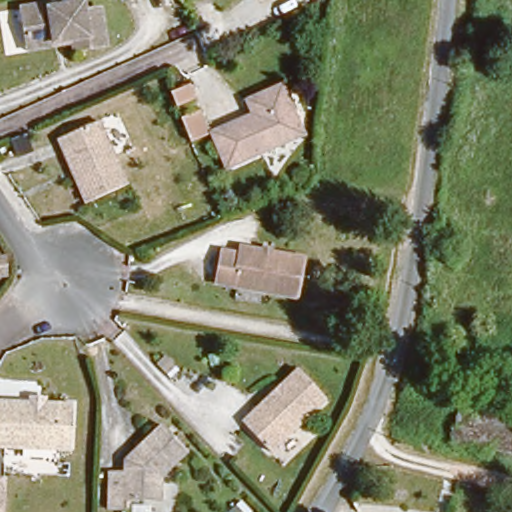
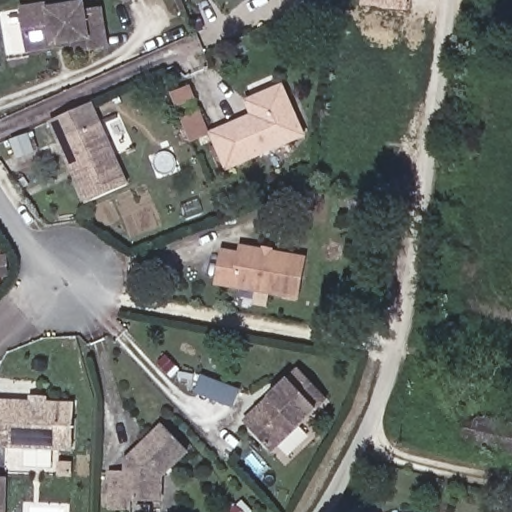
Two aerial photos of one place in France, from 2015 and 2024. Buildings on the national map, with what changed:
new [(361,5),(362,0),(408,0),(407,11),(361,5)]
unchanged [(71,42),(27,49),(25,35),(21,4),(50,1),(50,6),(57,6),(59,2),(82,1),(83,9),(100,8),(105,46),(89,47),(72,49),(71,42)]
unchanged [(182,74),(193,97),(175,105),(165,82),(182,74)]
unchanged [(207,138),(250,117),(242,102),(277,87),(302,137),(226,174),(207,138)]
unchanged [(193,117),(204,141),(185,149),(180,136),(175,126),(193,117)]
unchanged [(58,137),(99,119),(126,182),(89,199),(58,137)]
unchanged [(213,291),(216,256),(235,257),(236,249),(301,258),(295,301),(213,291)]
unchanged [(243,422),(293,367),(325,393),(273,448),(243,422)]
unchanged [(0,441),(0,401),(71,405),(70,446),(0,441)]
unchanged [(450,445),(452,415),(506,424),(501,452),(450,445)]
unchanged [(124,500),(123,511),(104,511),(105,473),(124,473),(139,455),(134,450),(165,418),(191,442),(161,473),(162,500),(124,500)]
unchanged [(506,424),(512,425),(512,455),(501,452),(506,424)]

